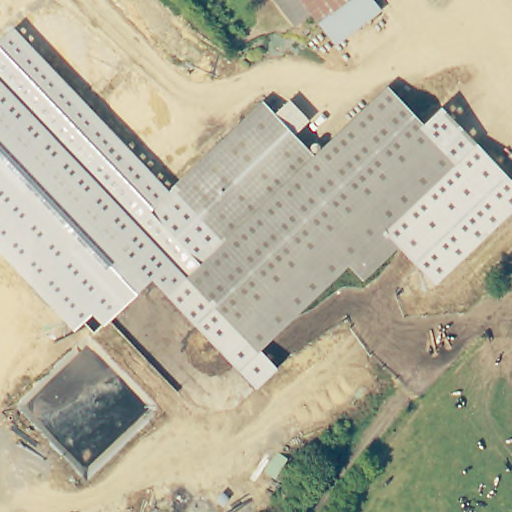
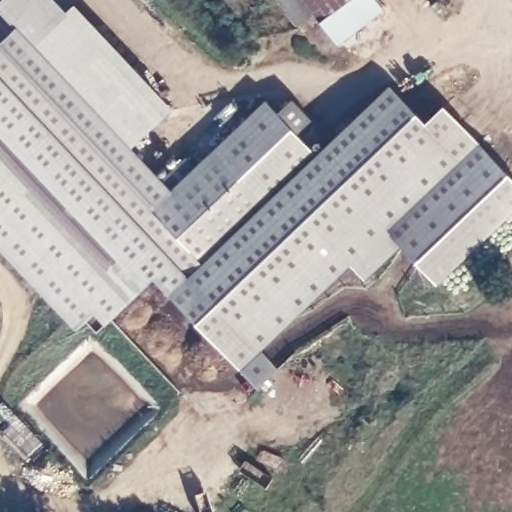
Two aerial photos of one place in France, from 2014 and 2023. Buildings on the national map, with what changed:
new [(0,13),(0,0),(53,0),(67,15),(32,47),(15,30),(0,13)]
new [(298,26),(277,0),(303,0),(315,15),(298,26)]
unchanged [(370,0),(378,10),(339,44),(303,0),(370,0)]
new [(129,150),(32,47),(67,15),(65,11),(73,3),(172,108),(129,150)]
unchanged [(222,241),(189,272),(257,350),(276,370),(257,387),(152,279),(107,325),(93,312),(75,330),(0,251),(0,43),(15,30),(168,191),(172,189),(222,241)]
unchanged [(172,189),(263,101),(317,155),(387,90),(457,165),(387,230),(400,245),(361,280),(347,266),(257,350),(189,272),(222,241),(172,189)]
unchanged [(512,180),(512,212),(437,284),(400,245),(387,230),(457,165),(421,126),(442,106),(512,180)]

